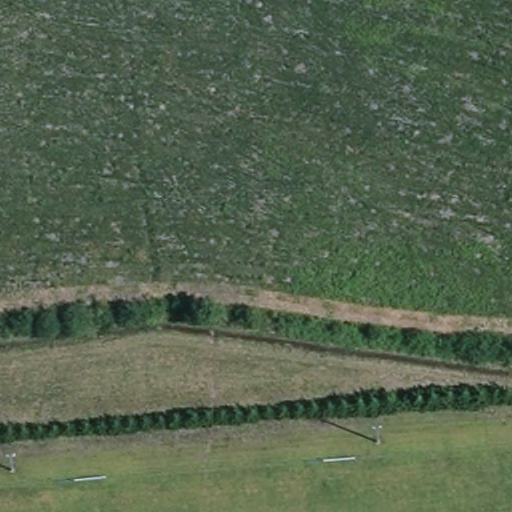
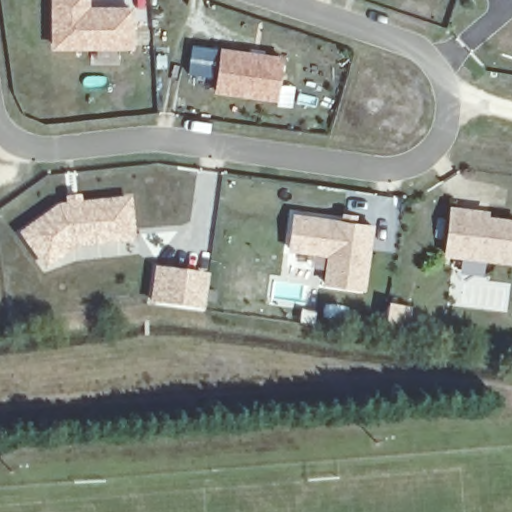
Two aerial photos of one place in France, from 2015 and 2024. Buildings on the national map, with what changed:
new [(50,0),(90,0),(90,5),(134,6),(134,49),(50,49),(50,0)]
new [(220,46),(282,55),(280,79),(294,86),(292,105),(277,101),(213,92),(220,46)]
new [(17,233),(59,203),(64,202),(64,196),(81,194),(82,200),(131,196),(135,240),(76,247),(45,271),(17,233)]
new [(489,215),(512,217),(512,262),(444,255),(450,205),(490,208),(489,215)]
new [(321,282),(326,255),(287,250),(292,212),(341,219),(341,212),(357,214),(357,221),(373,224),(365,290),(321,282)]
new [(154,267),(209,274),(203,309),(149,303),(154,267)]

